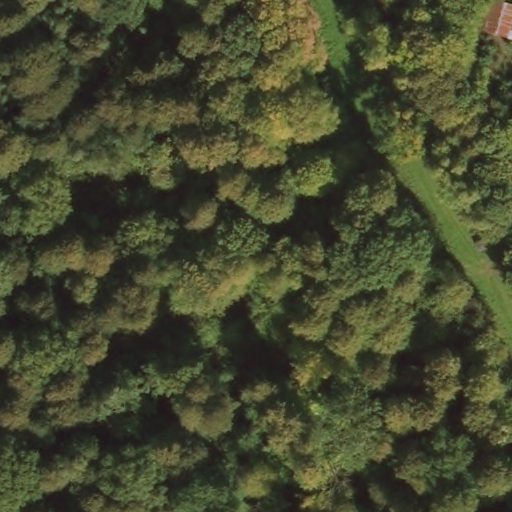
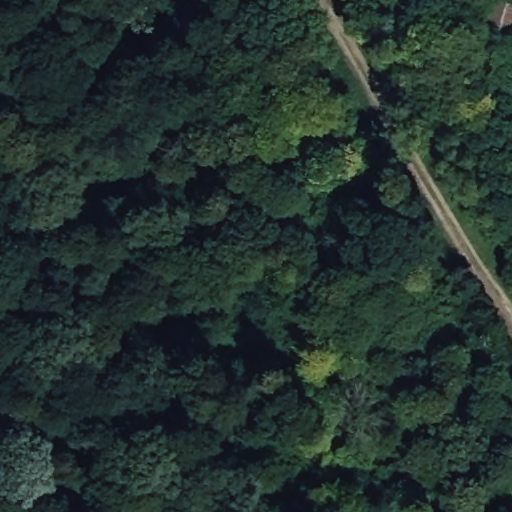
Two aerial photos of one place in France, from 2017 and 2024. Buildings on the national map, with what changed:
unchanged [(470,0),(512,0),(512,40),(466,33),(470,0)]

